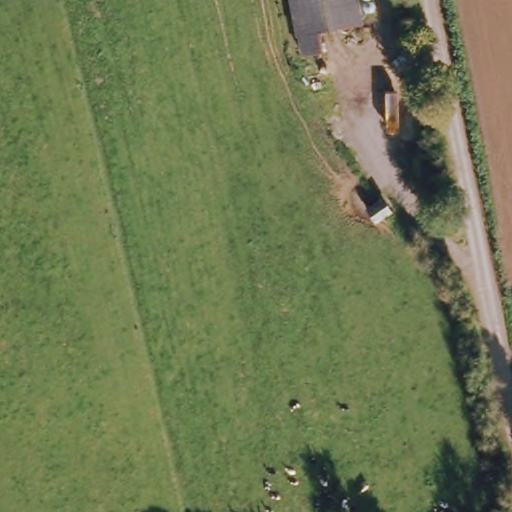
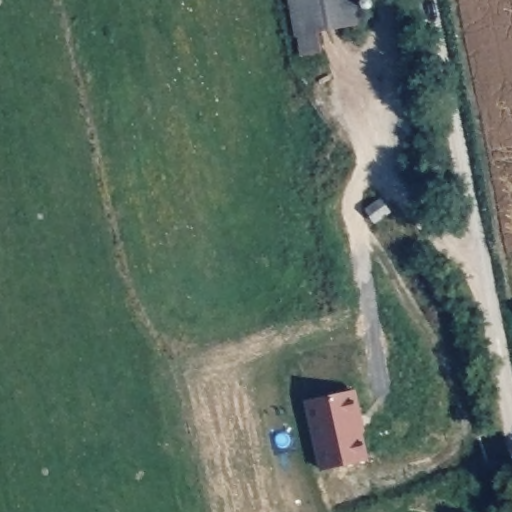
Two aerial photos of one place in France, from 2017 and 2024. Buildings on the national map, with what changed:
unchanged [(320,59),(298,63),(286,0),(353,0),(357,25),(316,33),(320,59)]
new [(352,393),(358,418),(354,419),(357,434),(359,433),(365,462),(320,471),(308,403),(352,393)]

